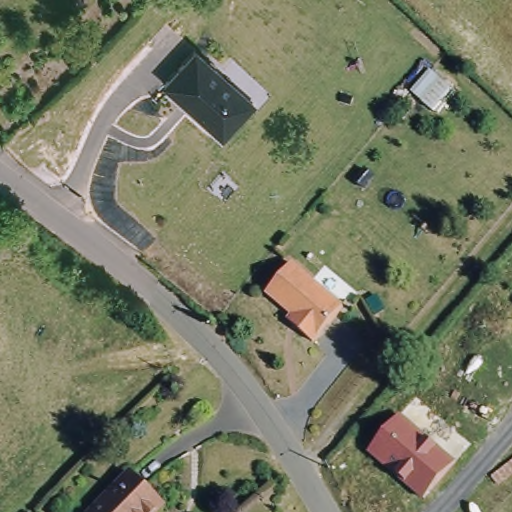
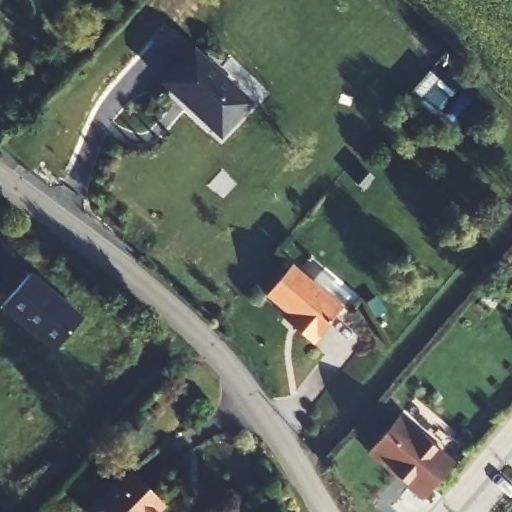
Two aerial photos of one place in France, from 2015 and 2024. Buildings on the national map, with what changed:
unchanged [(161,82),(196,46),(256,102),(222,138),(161,82)]
new [(53,352),(1,307),(31,271),(83,316),(53,352)]
unchanged [(339,315),(311,348),(294,335),(299,328),(268,302),(293,273),(339,315)]
unchanged [(457,461),(424,500),(368,455),(400,416),(457,461)]
unchanged [(145,512),(95,512),(88,504),(127,468),(156,502),(145,512)]

